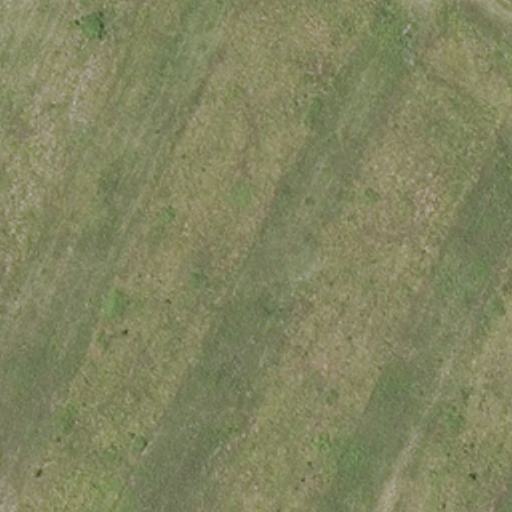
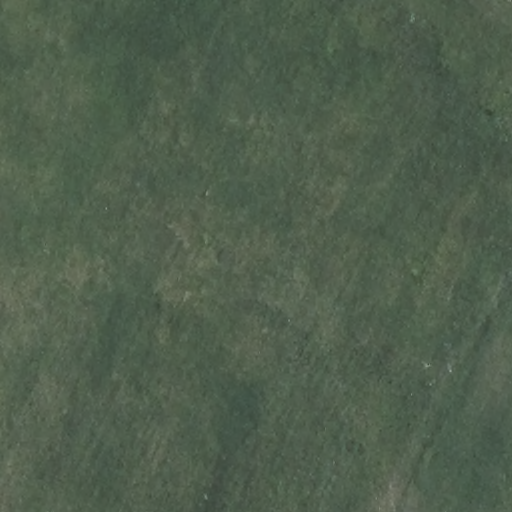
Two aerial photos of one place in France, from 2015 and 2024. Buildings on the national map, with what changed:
[]

